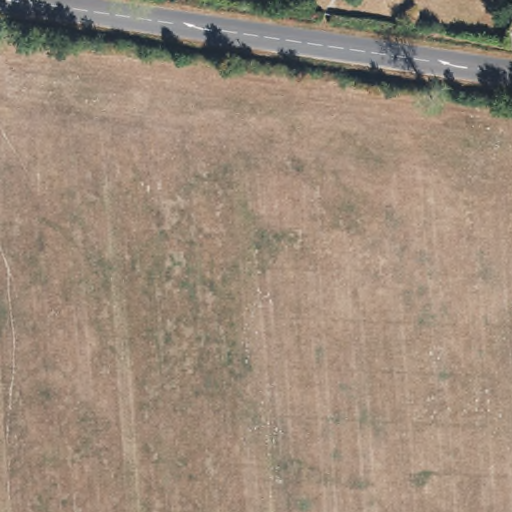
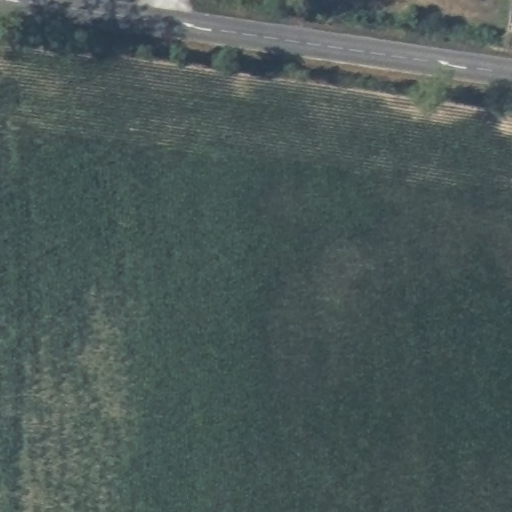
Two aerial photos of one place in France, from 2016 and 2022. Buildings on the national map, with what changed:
unchanged [(411,6),(415,11),(416,14),(415,17),(415,20),(412,22),(409,24),(407,25),(404,25),(401,24),(399,23),(396,19),(411,6)]
unchanged [(503,9),(511,10),(512,10),(512,51),(497,49),(503,9)]

